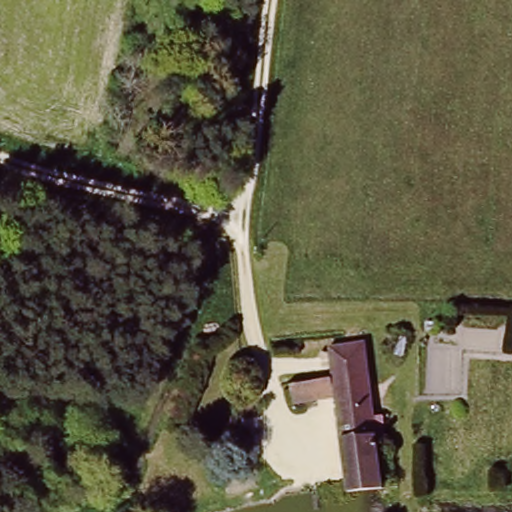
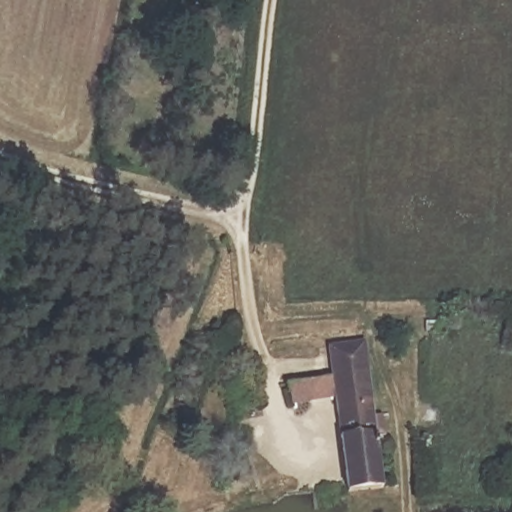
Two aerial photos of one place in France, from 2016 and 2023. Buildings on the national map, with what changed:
unchanged [(358,488),(354,488),(352,488),(347,489),(337,405),(294,409),(292,383),(335,378),(331,345),(367,341),(382,485),(358,488)]

